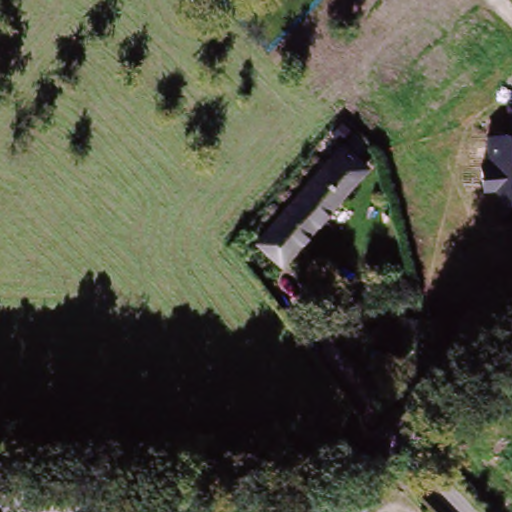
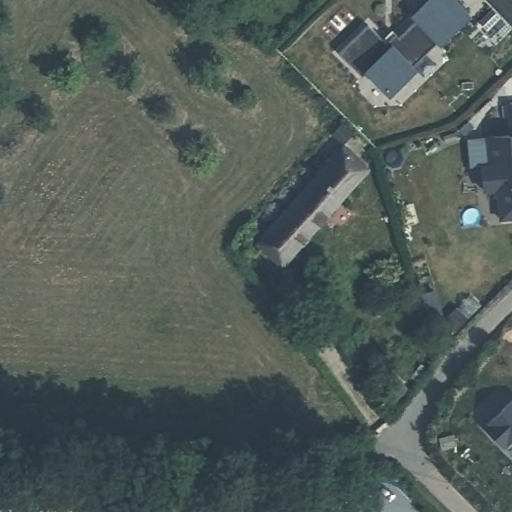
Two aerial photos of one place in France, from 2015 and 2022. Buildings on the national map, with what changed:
new [(393,31),(397,35),(400,39),(419,21),(415,17),(434,0),(449,0),(468,20),(441,45),(439,43),(411,70),(413,72),(389,94),(368,72),(363,77),(340,53),(370,25),(384,40),(393,31)]
unchanged [(509,229),(504,191),(483,193),(481,164),(489,163),(488,136),(506,134),(507,101),(512,101),(512,229),(509,229)]
unchanged [(346,156),(366,175),(281,267),(261,248),(346,156)]
demolished [(493,236),(508,249),(456,298),(443,285),(493,236)]
unchanged [(398,376),(411,391),(387,414),(374,401),(398,376)]
new [(512,404),(512,459),(485,432),(512,404)]
demolished [(489,463),(512,442),(512,487),(489,463)]

